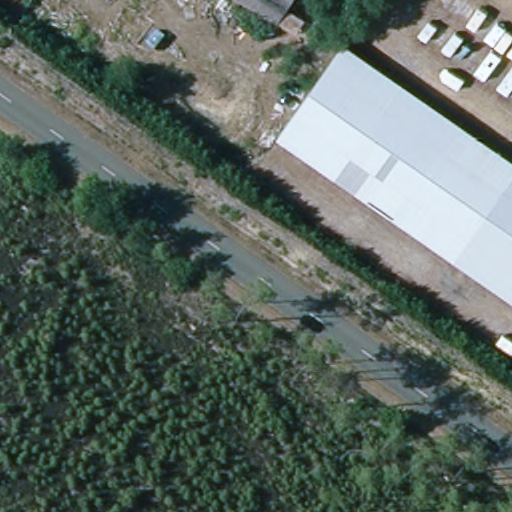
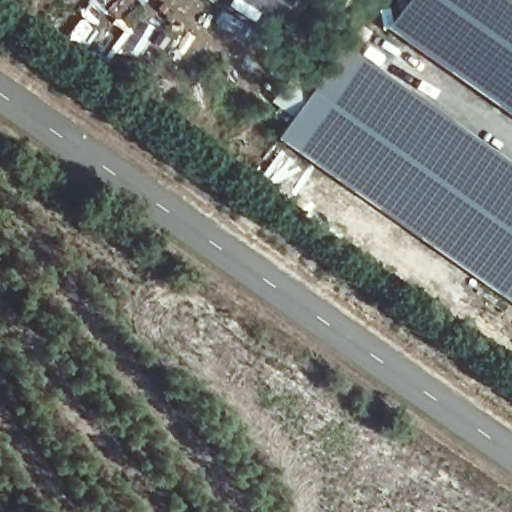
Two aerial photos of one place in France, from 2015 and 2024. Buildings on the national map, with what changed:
unchanged [(274,17),(251,0),(287,0),(274,17)]
new [(512,0),(512,117),(386,28),(405,0),(512,0)]
unchanged [(512,162),(512,301),(276,138),(342,41),(512,162)]

